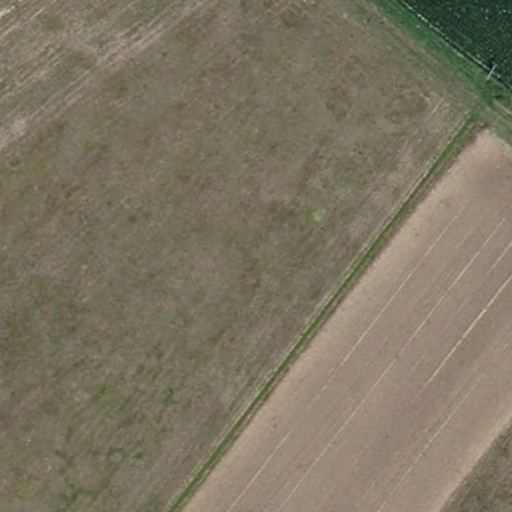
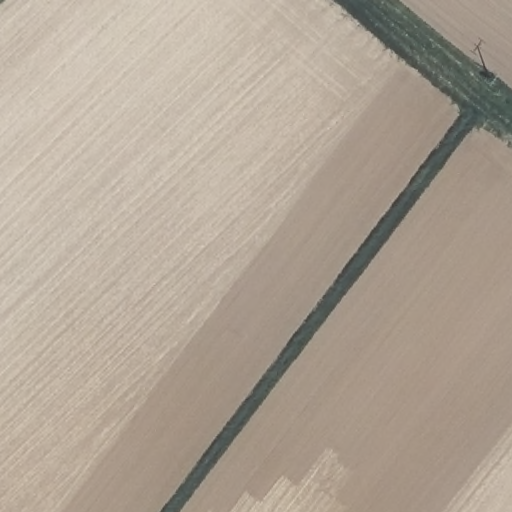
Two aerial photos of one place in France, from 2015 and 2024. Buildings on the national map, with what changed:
[]

